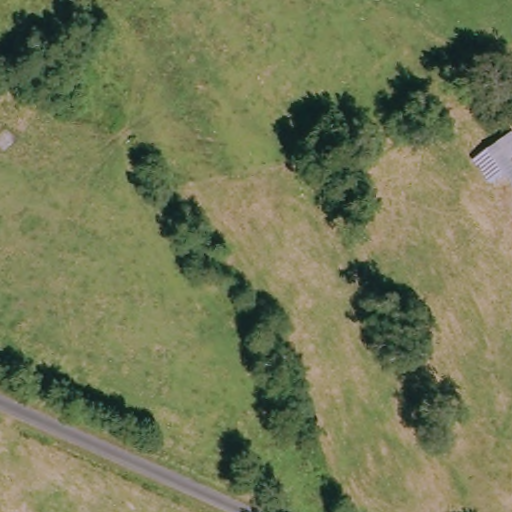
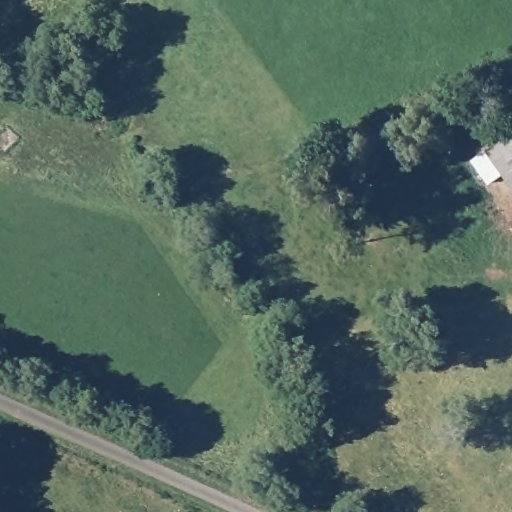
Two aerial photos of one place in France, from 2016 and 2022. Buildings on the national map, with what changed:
unchanged [(490,184),(472,160),(512,132),(512,184),(505,174),(490,184)]

